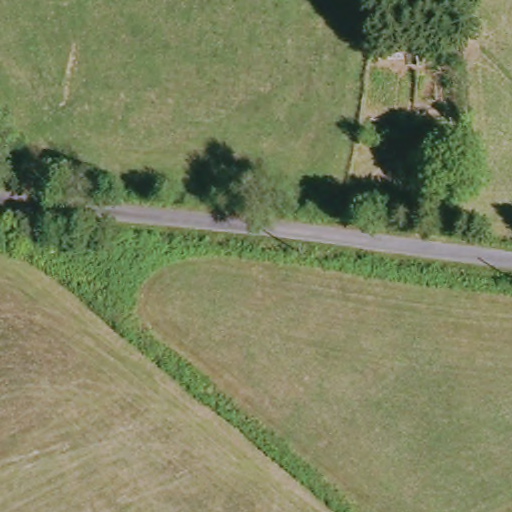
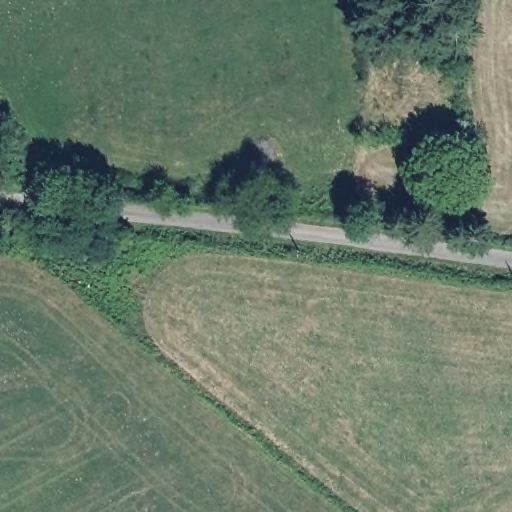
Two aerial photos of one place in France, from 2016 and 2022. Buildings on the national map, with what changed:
[]

